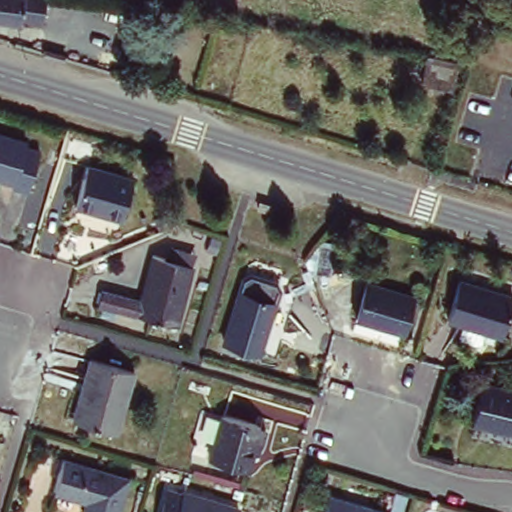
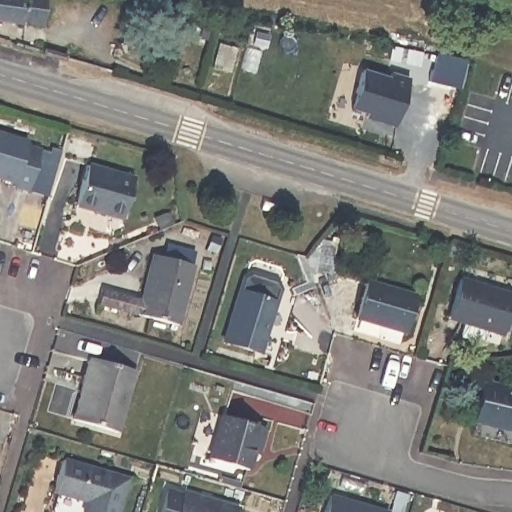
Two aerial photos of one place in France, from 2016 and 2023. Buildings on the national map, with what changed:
unchanged [(0,11),(0,0),(42,0),(39,16),(0,11)]
new [(385,72),(387,66),(412,75),(396,125),(349,110),(362,64),(385,72)]
unchanged [(23,142),(39,147),(26,187),(9,182),(11,180),(0,176),(0,131),(24,139),(23,142)]
unchanged [(134,174),(121,214),(75,200),(89,160),(134,174)]
unchanged [(182,324),(100,302),(105,288),(143,300),(156,253),(198,266),(182,324)]
unchanged [(511,293),(500,330),(447,313),(458,276),(511,293)]
unchanged [(417,290),(407,326),(361,311),(371,277),(417,290)]
unchanged [(274,302),(260,347),(225,336),(239,290),(274,302)]
unchanged [(136,367),(119,425),(76,412),(93,354),(136,367)]
unchanged [(483,380),(512,388),(512,428),(473,418),(483,380)]
unchanged [(268,423),(260,450),(254,448),(249,465),(212,455),(225,410),(262,422),(268,423)]
unchanged [(129,477),(119,512),(93,512),(84,510),(86,499),(55,489),(64,458),(129,477)]
unchanged [(247,505),(244,512),(162,512),(171,483),(247,505)]
unchanged [(332,490),(390,507),(389,512),(326,512),(332,490)]

